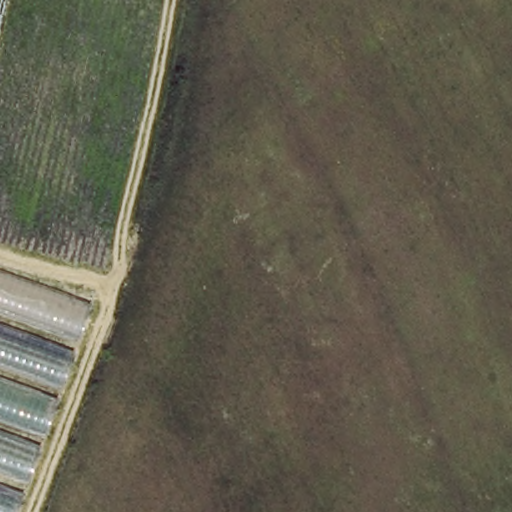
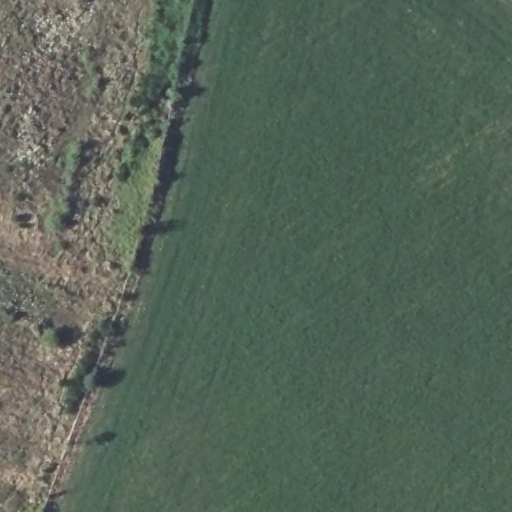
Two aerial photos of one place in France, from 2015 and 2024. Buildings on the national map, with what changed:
demolished [(0,512),(0,274),(90,305),(14,512),(0,512)]

